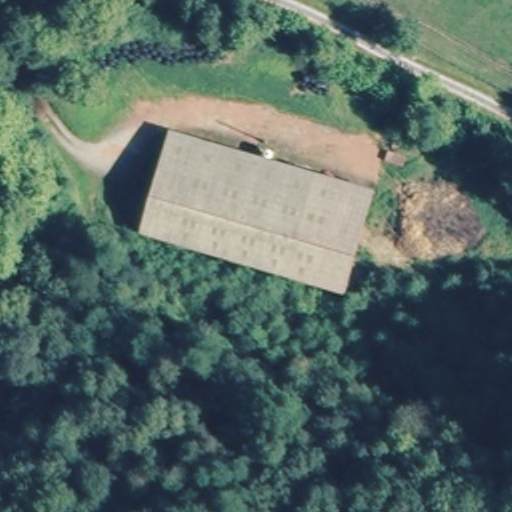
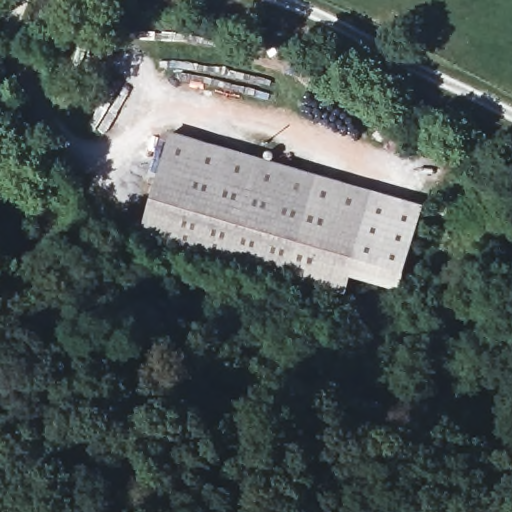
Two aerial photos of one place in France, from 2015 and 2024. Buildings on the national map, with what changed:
unchanged [(164,159),(173,130),(260,157),(373,191),(360,235),(348,277),(342,296),(170,244),(141,236),(164,159)]
new [(360,235),(373,191),(425,205),(399,292),(348,277),(360,235)]

